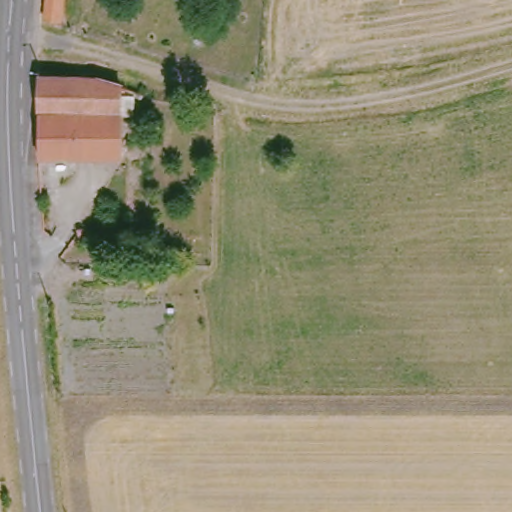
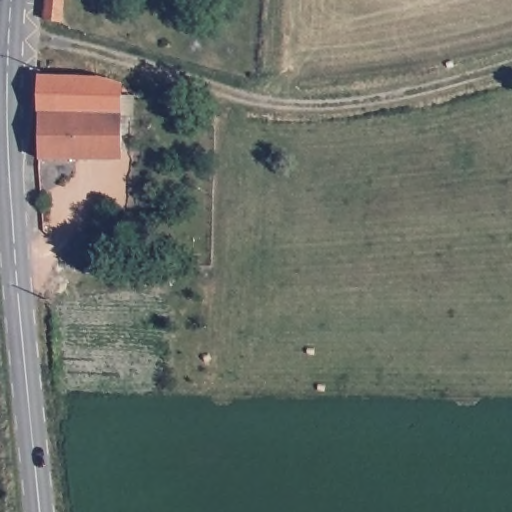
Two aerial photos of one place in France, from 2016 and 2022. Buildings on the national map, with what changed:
unchanged [(47,0),(64,0),(61,22),(45,20),(47,0)]
unchanged [(100,81),(122,88),(120,152),(75,152),(74,161),(40,161),(41,80),(100,81)]

